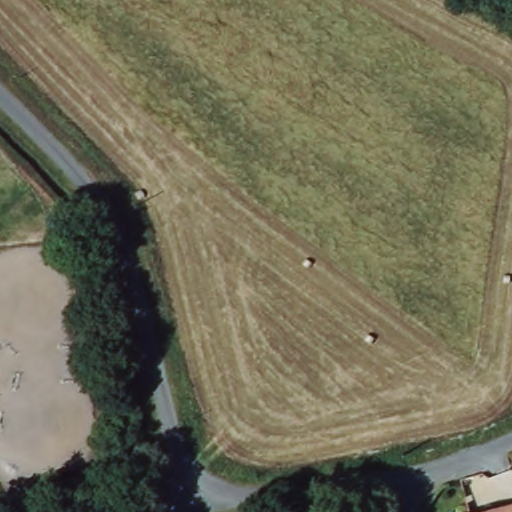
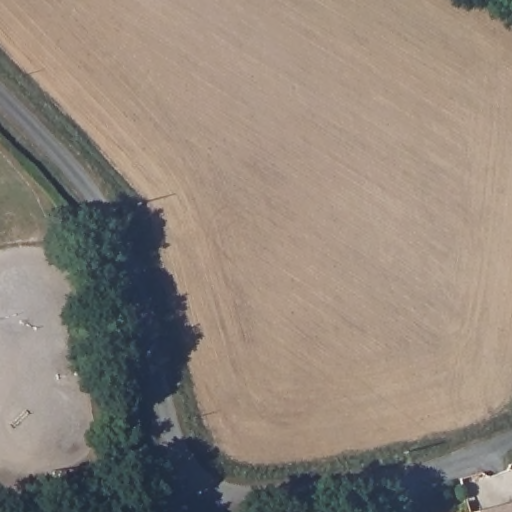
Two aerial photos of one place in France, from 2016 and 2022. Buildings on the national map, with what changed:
unchanged [(512,512),(479,512),(512,504),(512,512)]

